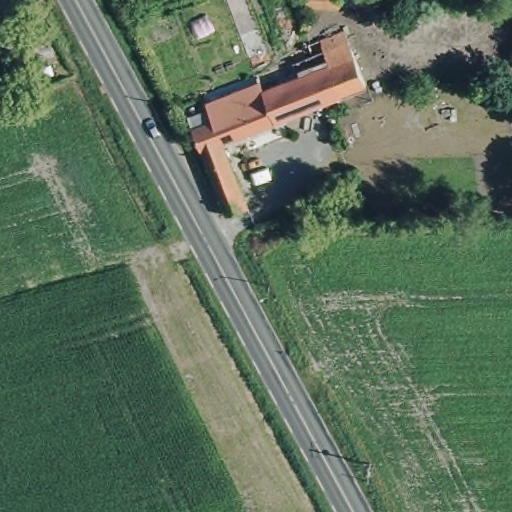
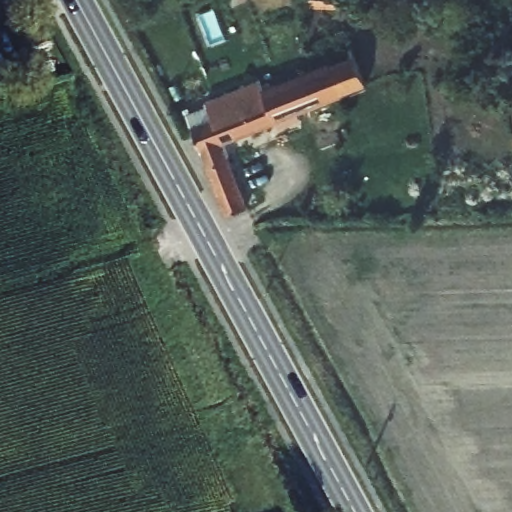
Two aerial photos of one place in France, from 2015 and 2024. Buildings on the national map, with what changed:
unchanged [(318,12),(319,0),(383,0),(382,15),(318,12)]
unchanged [(226,150),(255,212),(233,222),(192,139),(233,120),(227,107),(280,83),(272,68),(351,35),(371,85),(226,150)]

